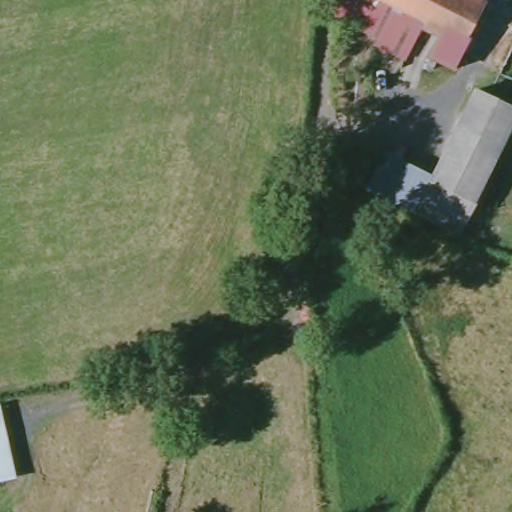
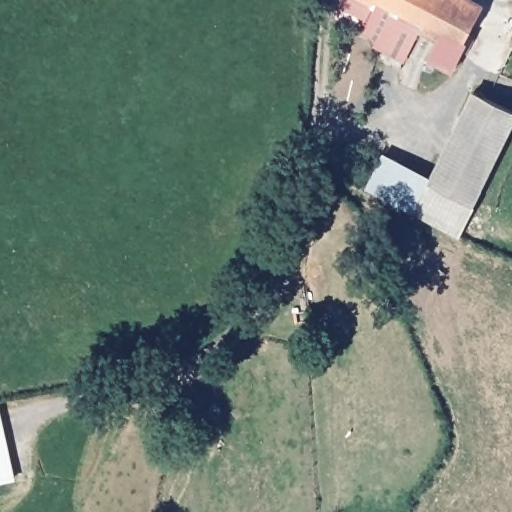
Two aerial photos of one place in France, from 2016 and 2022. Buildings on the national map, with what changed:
unchanged [(434,39),(413,87),(393,82),(397,59),(335,29),(336,0),(469,0),(479,5),(456,50),(434,39)]
unchanged [(467,205),(453,237),(357,189),(380,150),(429,175),(469,90),(512,110),(512,123),(467,205)]
unchanged [(0,482),(0,415),(15,478),(0,482)]

